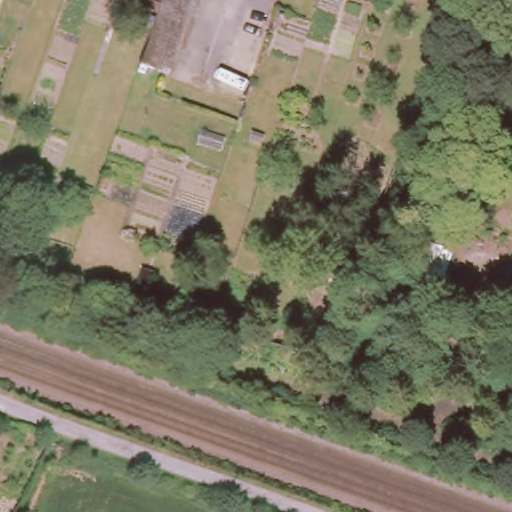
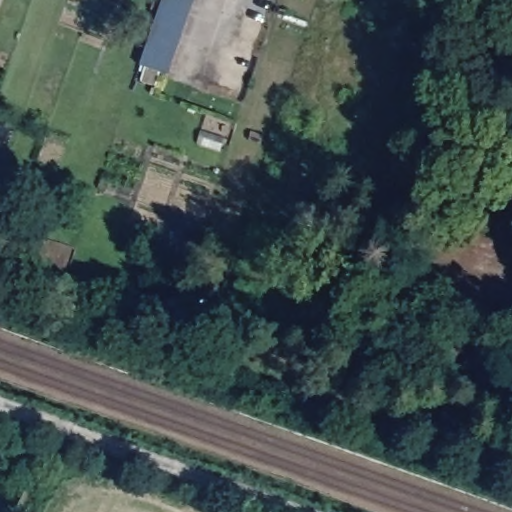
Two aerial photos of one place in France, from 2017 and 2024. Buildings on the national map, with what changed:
unchanged [(163,0),(194,0),(167,75),(140,66),(163,0)]
unchanged [(0,267),(0,254),(4,255),(0,267)]

